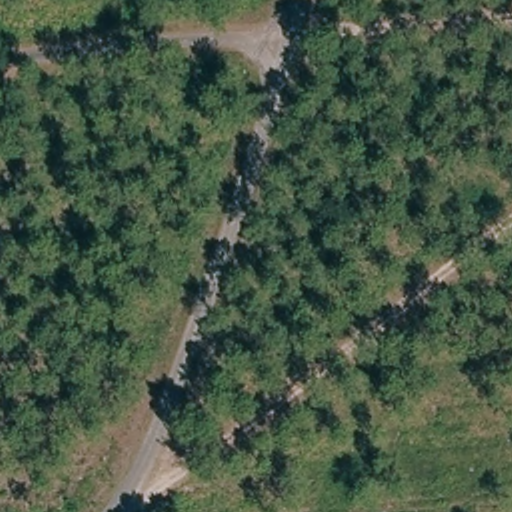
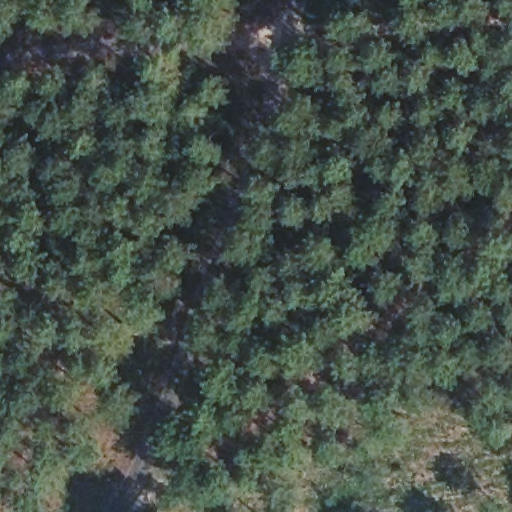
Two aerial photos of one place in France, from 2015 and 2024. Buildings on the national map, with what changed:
[]

